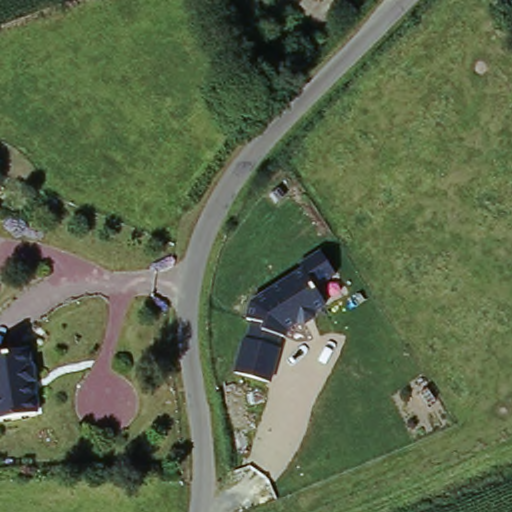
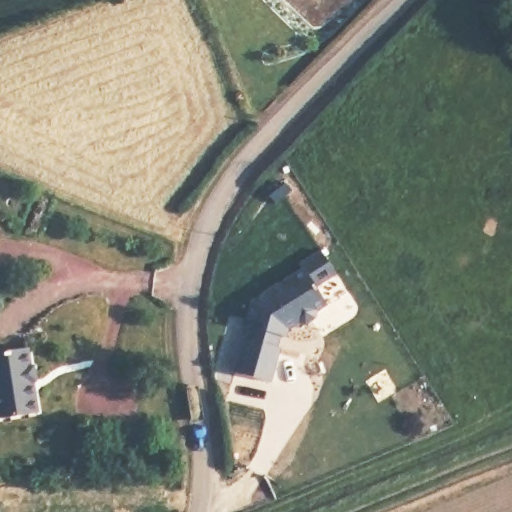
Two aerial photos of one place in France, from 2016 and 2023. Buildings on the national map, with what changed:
unchanged [(336,271),(315,284),(324,301),(315,308),(314,316),(307,320),(297,319),(286,327),(283,335),(262,329),(264,323),(246,318),(250,301),(302,268),(299,262),(321,249),(336,271)]
unchanged [(279,343),(269,382),(234,372),(242,334),(279,343)]
unchanged [(23,352),(27,370),(29,370),(32,384),(29,384),(35,415),(0,422),(0,356),(23,352)]

